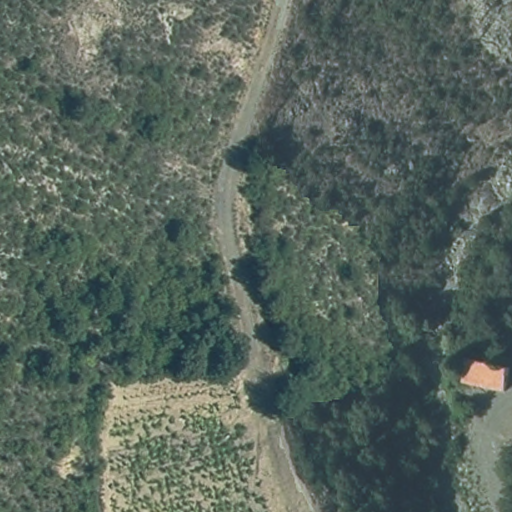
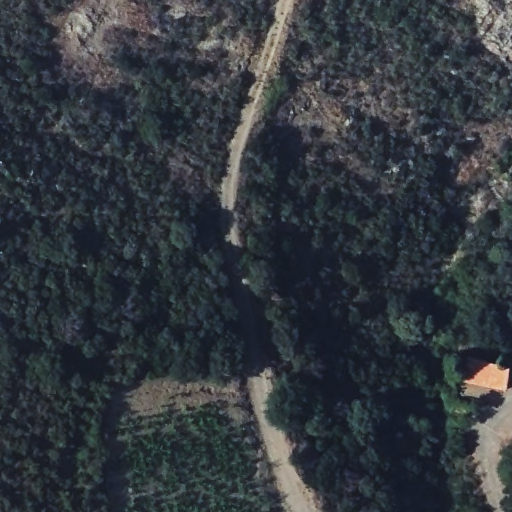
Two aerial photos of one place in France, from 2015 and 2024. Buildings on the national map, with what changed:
unchanged [(479,361),(512,370),(512,384),(479,380),(479,361)]

